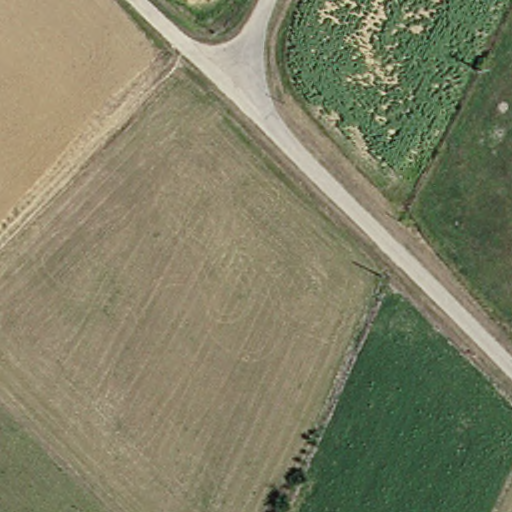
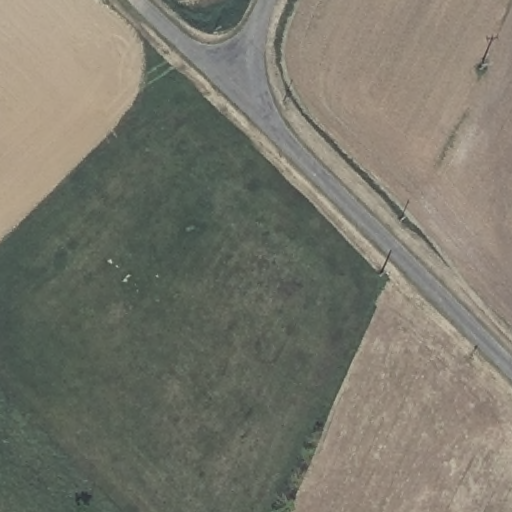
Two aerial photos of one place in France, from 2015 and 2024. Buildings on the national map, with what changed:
[]

